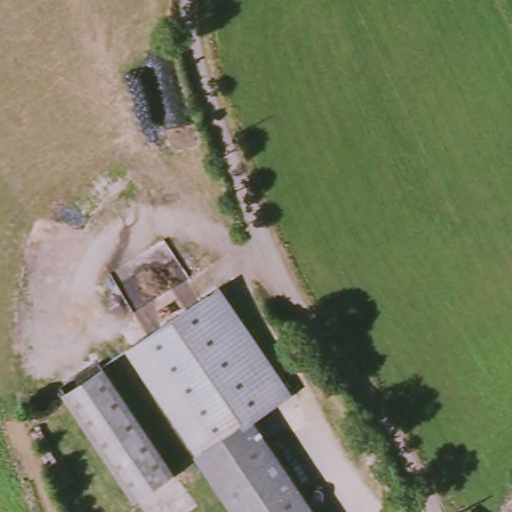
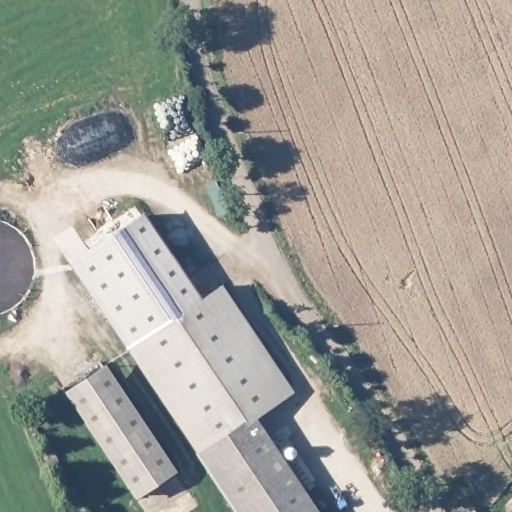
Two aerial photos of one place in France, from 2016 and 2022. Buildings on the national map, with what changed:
new [(74,258),(140,212),(200,300),(129,345),(74,258)]
unchanged [(252,413),(197,448),(129,345),(224,285),(291,388),(252,413)]
unchanged [(140,500),(64,388),(102,363),(176,476),(140,500)]
unchanged [(252,413),(319,512),(238,512),(197,448),(252,413)]
unchanged [(477,512),(453,512),(452,511),(455,504),(463,505),(467,502),(477,512)]

